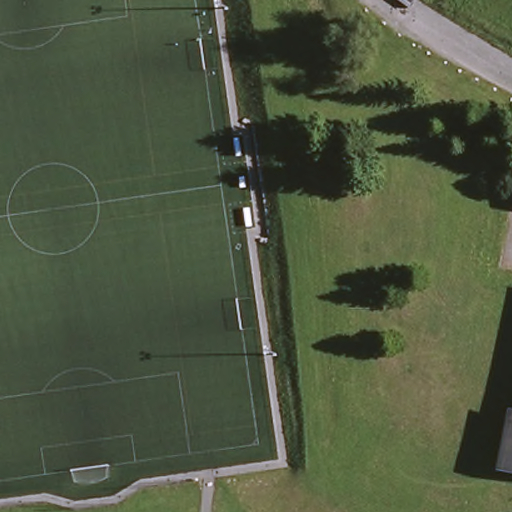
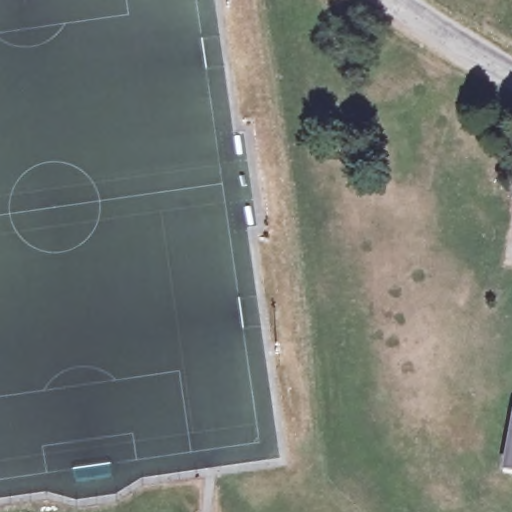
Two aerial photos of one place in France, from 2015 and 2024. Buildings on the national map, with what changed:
unchanged [(506,465),(512,430),(512,466),(506,465)]

